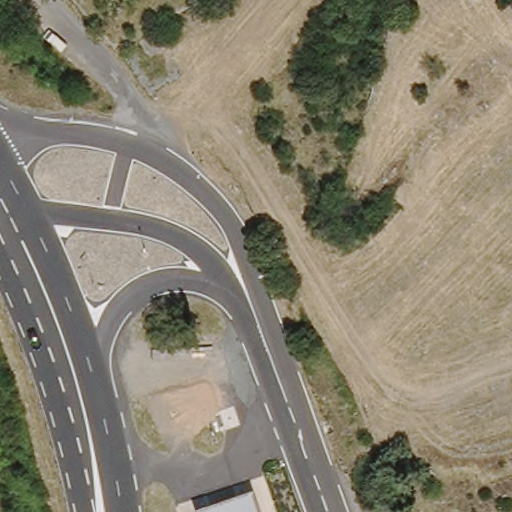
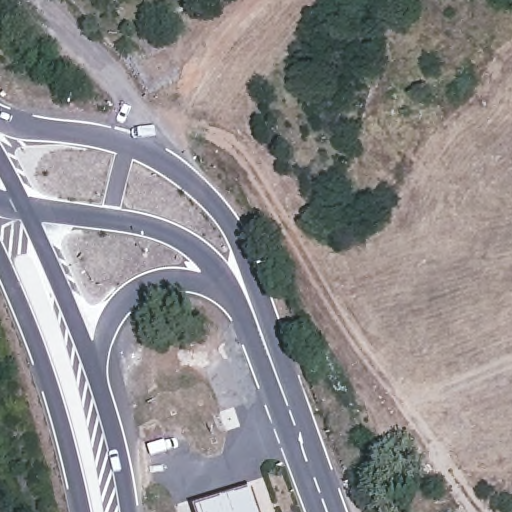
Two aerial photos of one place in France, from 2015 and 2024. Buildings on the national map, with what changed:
unchanged [(253,495),(259,512),(206,512),(253,495)]

